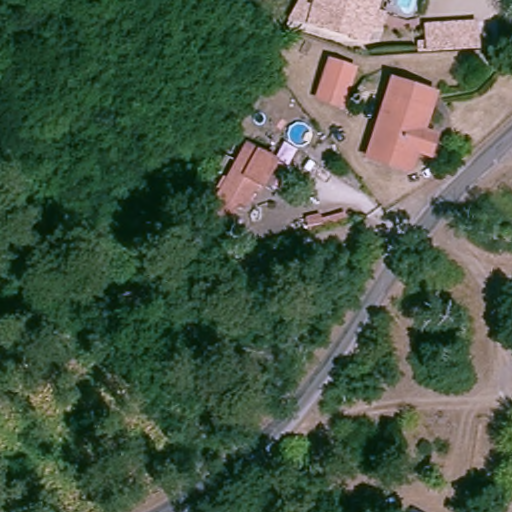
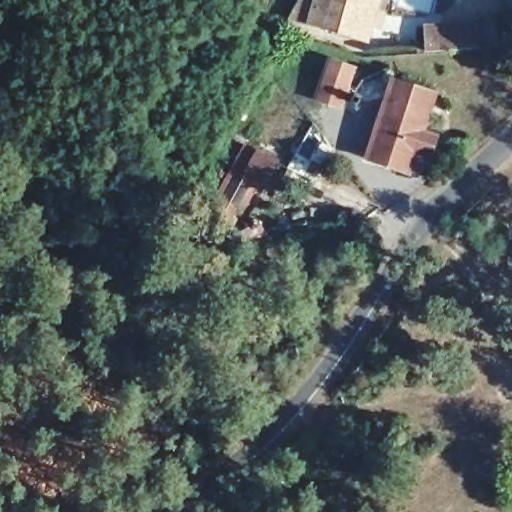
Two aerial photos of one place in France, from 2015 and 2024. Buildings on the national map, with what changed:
unchanged [(376,23),(368,21),(363,36),(306,18),(312,0),(375,0),(372,8),(380,10),(376,23)]
unchanged [(418,33),(468,29),(470,49),(420,53),(418,33)]
unchanged [(333,59),(362,79),(352,96),(322,74),(333,59)]
unchanged [(384,89),(425,103),(422,113),(415,133),(429,137),(423,156),(410,152),(402,172),(361,158),(380,99),(384,89)]
unchanged [(268,157),(254,183),(248,180),(235,202),(230,199),(217,221),(201,212),(241,142),(268,157)]

